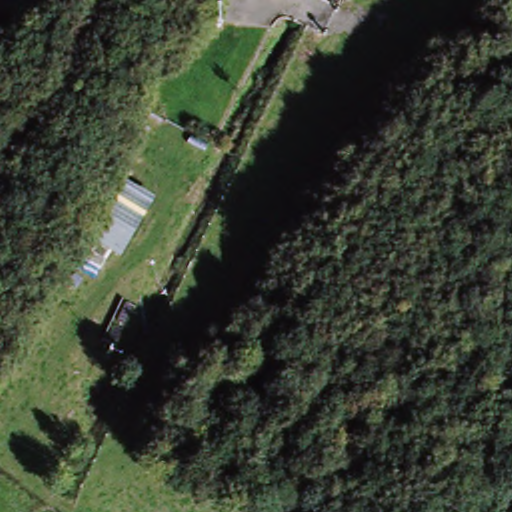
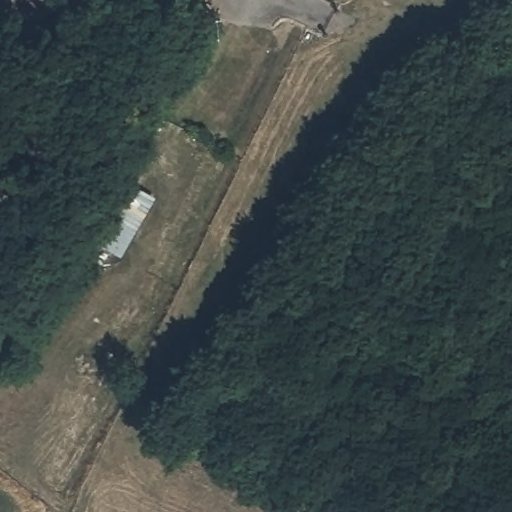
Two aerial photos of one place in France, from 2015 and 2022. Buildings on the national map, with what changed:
unchanged [(123,257),(111,251),(103,266),(82,256),(120,174),(156,197),(123,257)]

